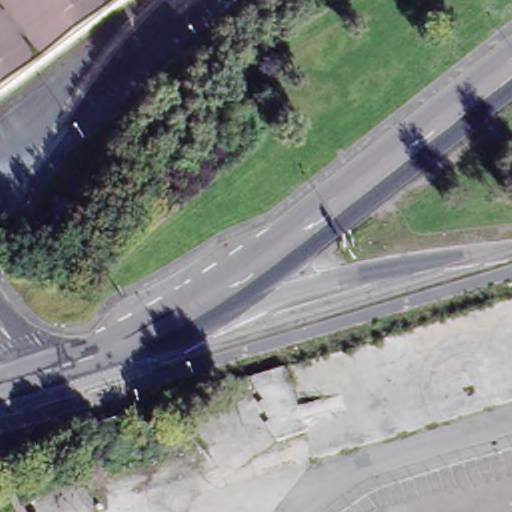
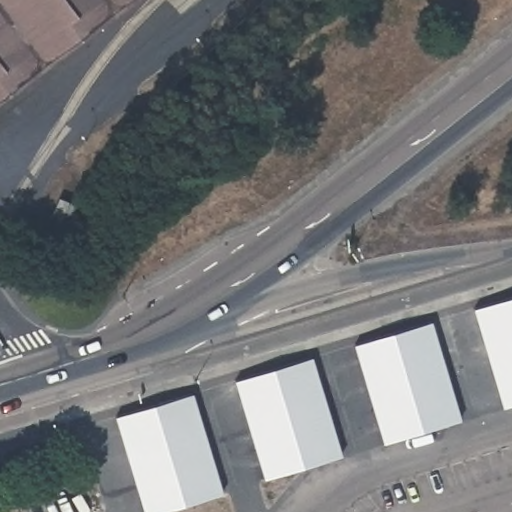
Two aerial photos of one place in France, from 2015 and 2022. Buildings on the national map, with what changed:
unchanged [(0,0),(131,0),(0,98),(0,0)]
unchanged [(59,248),(43,242),(60,202),(76,209),(59,248)]
new [(472,310),(512,298),(512,406),(501,409),(472,310)]
new [(353,346),(431,322),(460,422),(382,444),(353,346)]
new [(233,382),(311,358),(341,458),(263,479),(233,382)]
new [(162,512),(142,512),(114,417),(191,394),(222,495),(162,512)]

